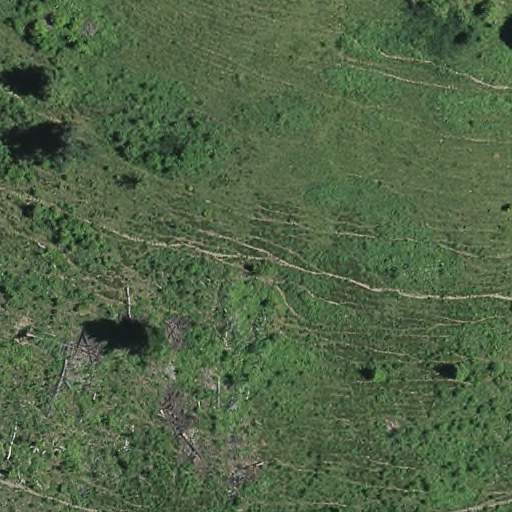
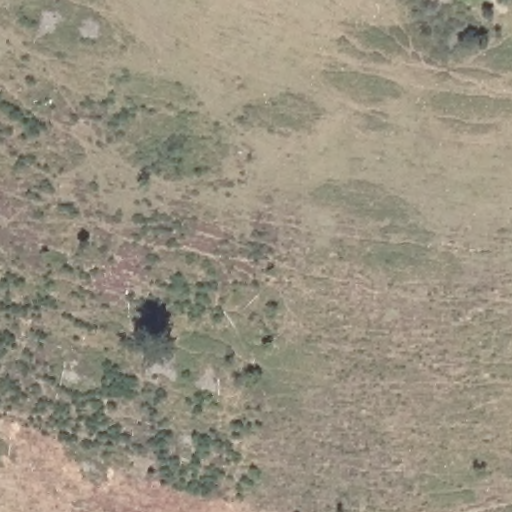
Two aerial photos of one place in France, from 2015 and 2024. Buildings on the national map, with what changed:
[]

